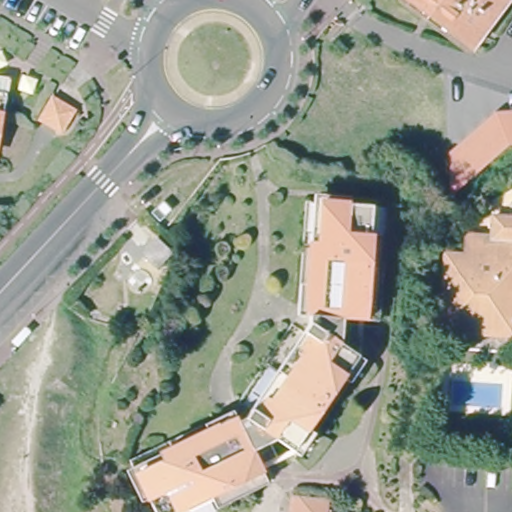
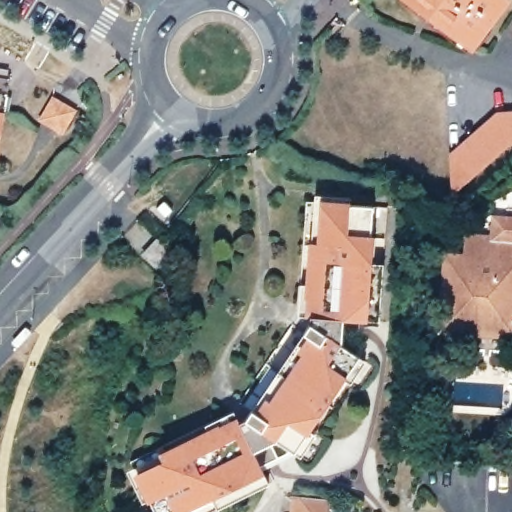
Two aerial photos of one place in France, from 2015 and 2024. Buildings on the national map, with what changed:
unchanged [(507,1),(473,48),(411,0),(505,0),(507,1)]
unchanged [(6,91),(0,116),(0,90),(6,91)]
unchanged [(68,115),(55,132),(37,117),(49,101),(68,115)]
unchanged [(463,155),(463,142),(477,141),(477,130),(492,129),(492,117),(507,116),(506,112),(512,112),(512,144),(509,145),(452,195),(449,155),(463,155)]
unchanged [(452,249),(472,250),(472,230),(496,230),(496,211),(512,212),(512,347),(461,345),(448,344),(449,333),(452,249)]
unchanged [(224,499),(211,504),(210,501),(187,511),(185,507),(173,512),(157,512),(141,472),(166,461),(163,452),(197,438),(195,433),(231,417),(234,426),(237,431),(246,427),(255,415),(309,345),(316,336),(315,328),(313,328),(303,327),(305,296),(312,296),(313,256),(317,256),(318,212),(326,212),(376,216),(374,245),(378,245),(377,271),(380,272),(378,298),(385,299),(384,330),(371,330),(365,330),(363,347),(347,346),(346,359),(365,374),(348,396),(344,393),(307,439),(311,442),(295,464),(272,445),(265,448),(272,465),(252,472),(256,480),(261,491),(226,506),(224,499)]
unchanged [(152,234),(167,245),(163,251),(166,254),(159,263),(140,250),(152,234)]
unchanged [(327,497),(326,512),(293,512),(295,495),(327,497)]

